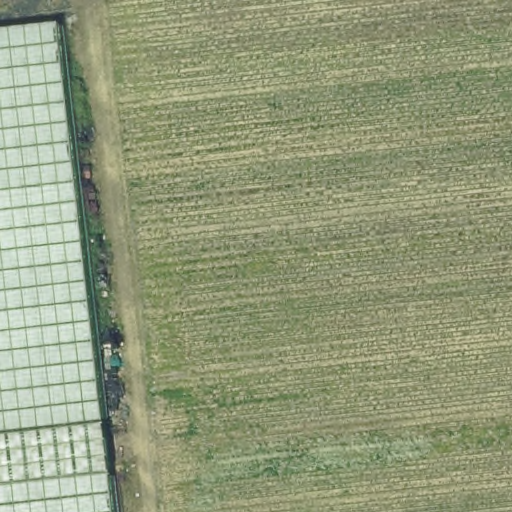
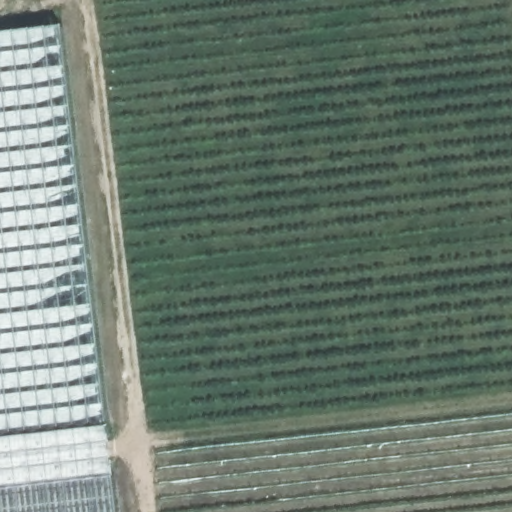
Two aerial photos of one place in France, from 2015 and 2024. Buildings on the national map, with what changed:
unchanged [(117,512),(0,512),(0,31),(62,24),(117,512)]

